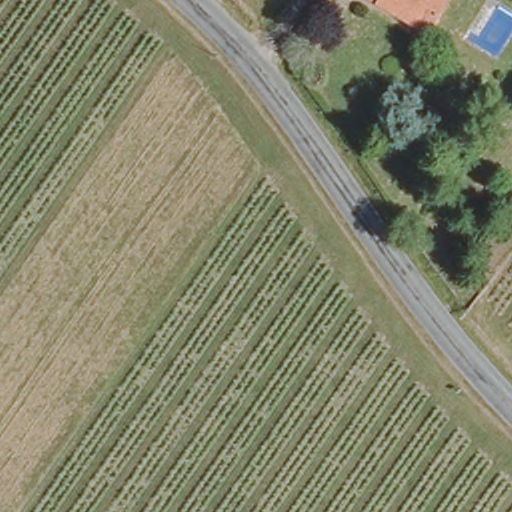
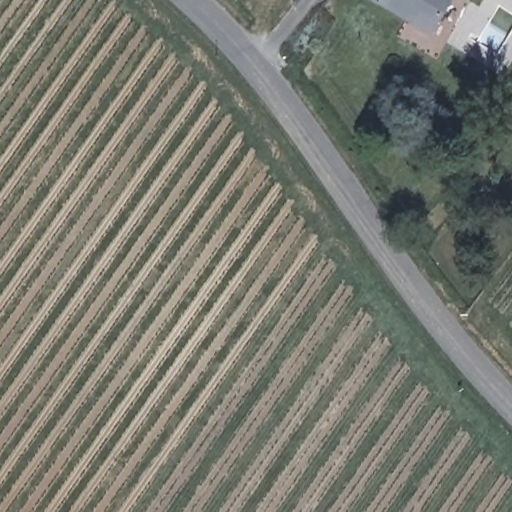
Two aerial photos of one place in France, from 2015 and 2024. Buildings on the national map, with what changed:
unchanged [(371,0),(447,0),(426,34),(371,0)]

